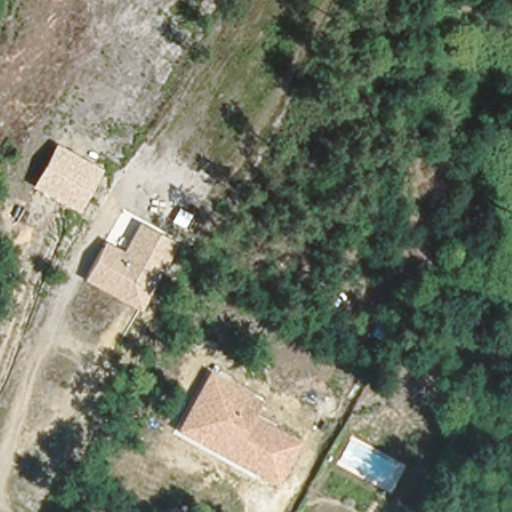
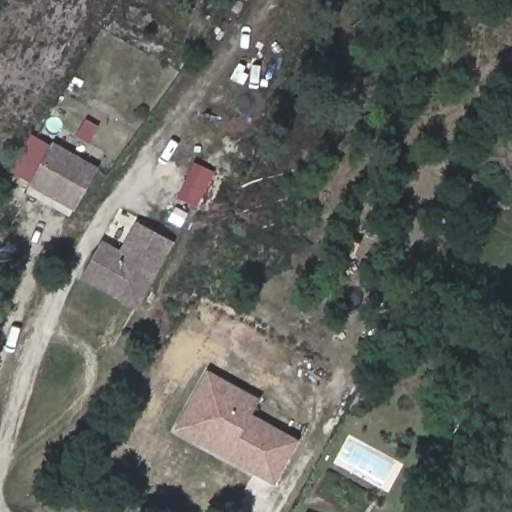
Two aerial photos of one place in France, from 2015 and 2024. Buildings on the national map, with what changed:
unchanged [(54,144),(100,167),(77,210),(30,185),(54,144)]
unchanged [(139,310),(81,278),(103,241),(121,250),(136,221),(176,241),(139,310)]
unchanged [(254,415),(303,441),(278,487),(176,430),(209,370),(262,400),(254,415)]

